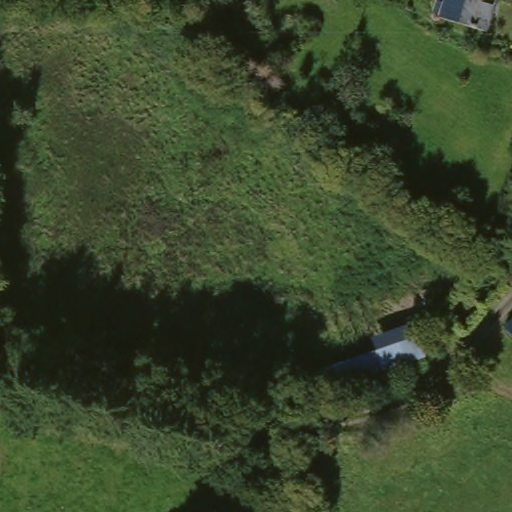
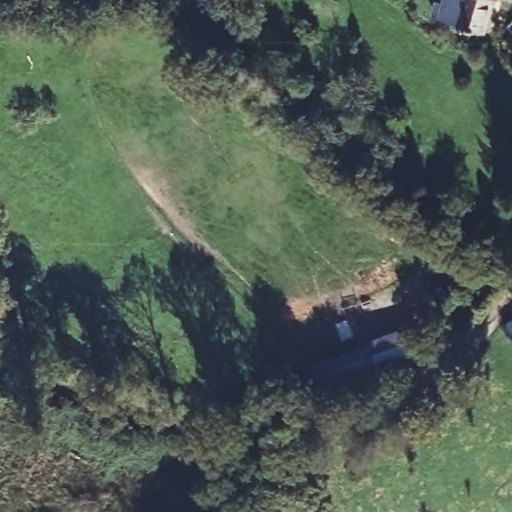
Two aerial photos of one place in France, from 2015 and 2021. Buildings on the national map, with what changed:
unchanged [(432,18),(437,2),(438,0),(490,0),(479,34),(432,18)]
unchanged [(512,5),(496,0),(512,0),(512,5)]
unchanged [(406,369),(316,397),(306,373),(395,347),(406,369)]

